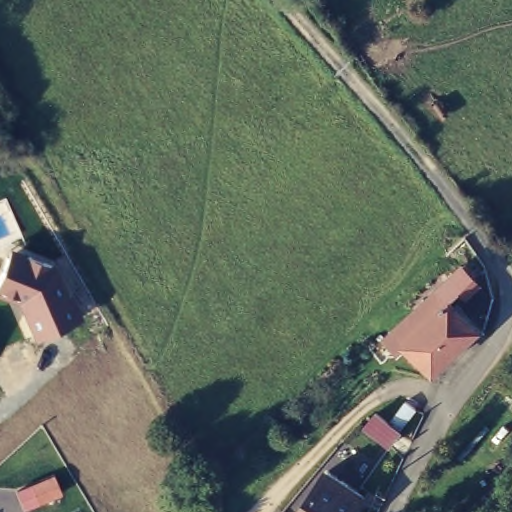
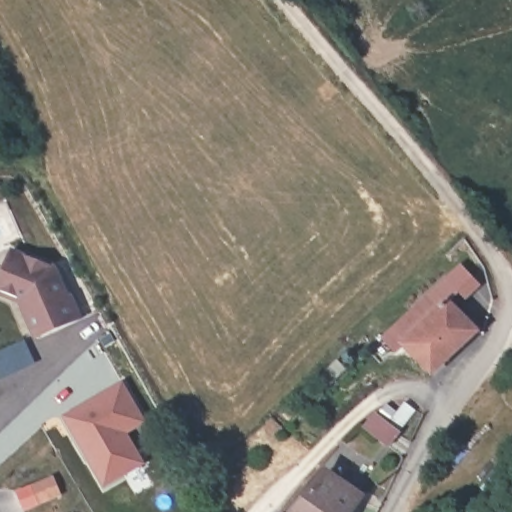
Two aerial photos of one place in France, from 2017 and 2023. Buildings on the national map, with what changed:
unchanged [(24,306),(0,296),(0,272),(10,247),(60,267),(81,319),(38,340),(24,306)]
unchanged [(382,337),(436,282),(449,295),(445,299),(438,305),(431,312),(408,335),(407,335),(402,341),(403,341),(401,344),(400,344),(395,349),(394,349),(382,337)]
unchanged [(472,331),(474,333),(467,340),(429,375),(424,368),(411,353),(404,344),(408,340),(409,339),(438,313),(445,308),(450,303),(457,312),(470,327),(472,331)]
new [(103,487),(64,416),(123,381),(147,422),(128,433),(145,463),(103,487)]
unchanged [(391,449),(379,460),(364,445),(361,442),(358,439),(370,428),(375,433),(377,435),(391,449)]
unchanged [(356,497),(345,512),(296,512),(325,474),(356,497)]

